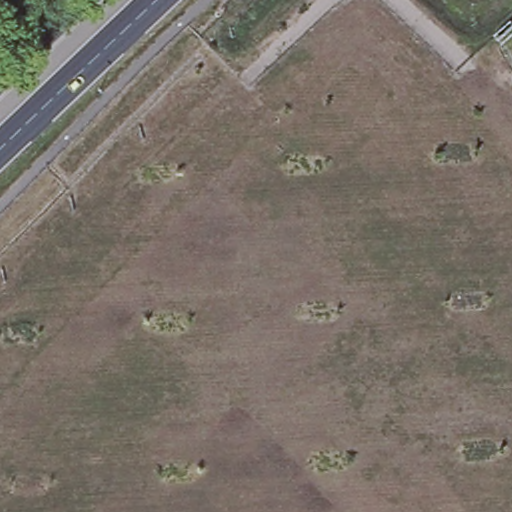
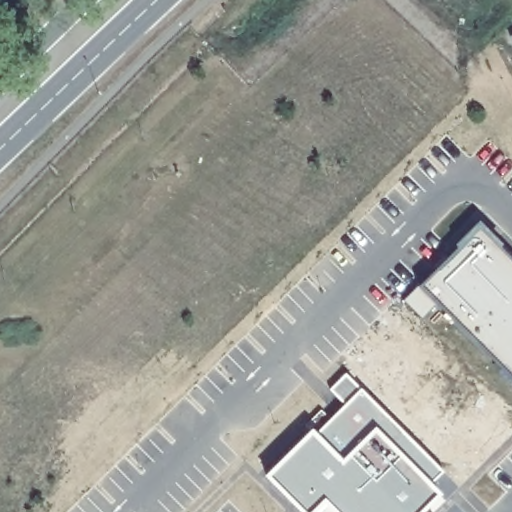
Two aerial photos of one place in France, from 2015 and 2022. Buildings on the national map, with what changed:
new [(480,224),(512,256),(512,379),(422,286),(480,224)]
new [(331,390),(347,374),(442,472),(432,483),(445,497),(430,512),(302,512),(267,476),(347,404),(331,390)]

